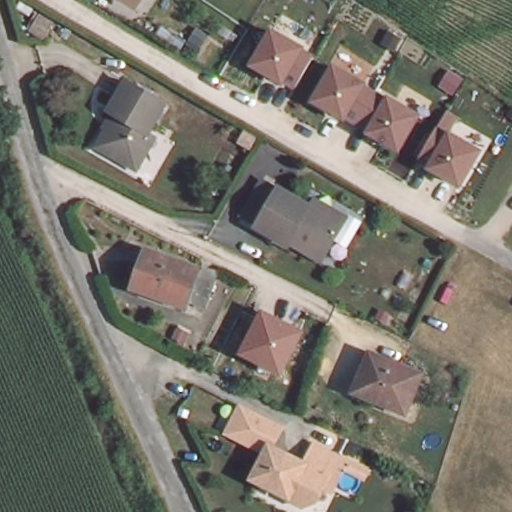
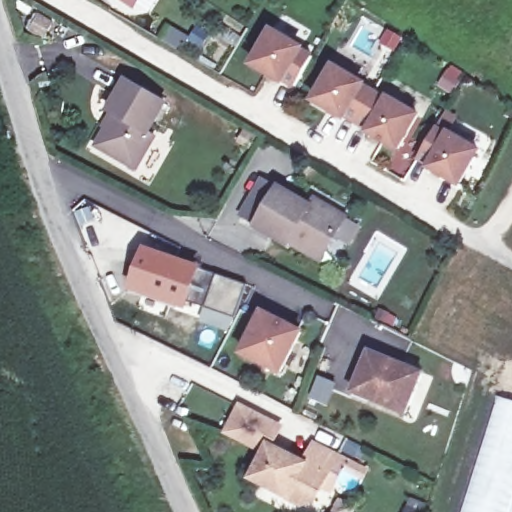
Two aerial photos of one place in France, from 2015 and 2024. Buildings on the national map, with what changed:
unchanged [(121,0),(142,0),(136,11),(121,0)]
unchanged [(271,29),(304,47),(303,50),(314,57),(296,87),(289,82),(284,87),(248,66),(271,29)]
unchanged [(332,62),(423,115),(400,152),(311,100),(332,62)]
unchanged [(152,144),(139,165),(100,142),(119,110),(112,106),(128,77),(168,101),(151,129),(158,134),(152,144)]
unchanged [(426,169),(428,166),(418,161),(439,126),(449,131),(481,150),(459,188),(426,169)]
unchanged [(288,245),(256,227),(278,188),(309,206),(313,200),(325,206),(346,217),(325,255),(321,262),(288,245)]
unchanged [(186,269),(203,275),(192,307),(123,282),(138,245),(188,264),(186,269)]
new [(213,276),(241,286),(231,316),(203,306),(213,276)]
unchanged [(304,330),(284,373),(241,354),(261,308),(304,330)]
unchanged [(404,414),(353,392),(369,352),(420,373),(404,414)]
new [(497,396),(512,401),(512,512),(460,512),(497,396)]
unchanged [(308,500),(296,503),(254,481),(251,469),(261,451),(223,432),(236,408),(274,428),(264,447),(286,458),(299,465),(309,446),(338,462),(360,472),(351,491),(329,480),(324,488),(316,484),(308,500)]

